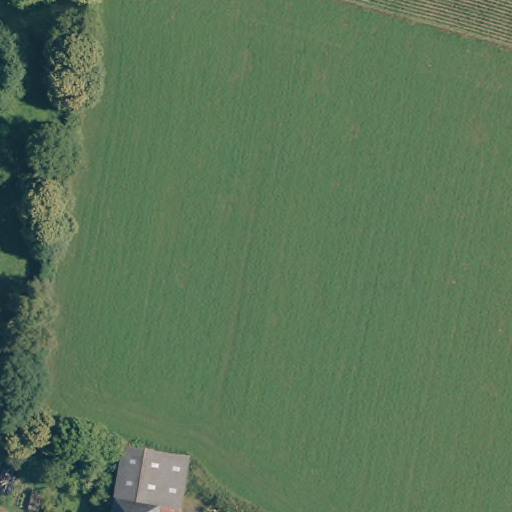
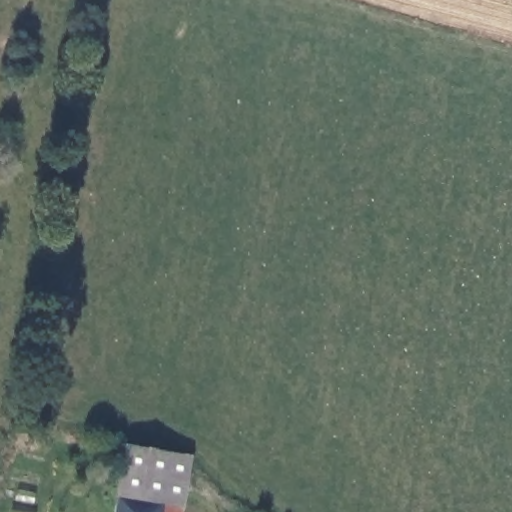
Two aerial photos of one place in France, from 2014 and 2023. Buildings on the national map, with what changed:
unchanged [(121,491),(129,444),(192,456),(195,457),(187,505),(182,503),(121,491)]
unchanged [(160,505),(158,512),(116,512),(119,497),(160,505)]

